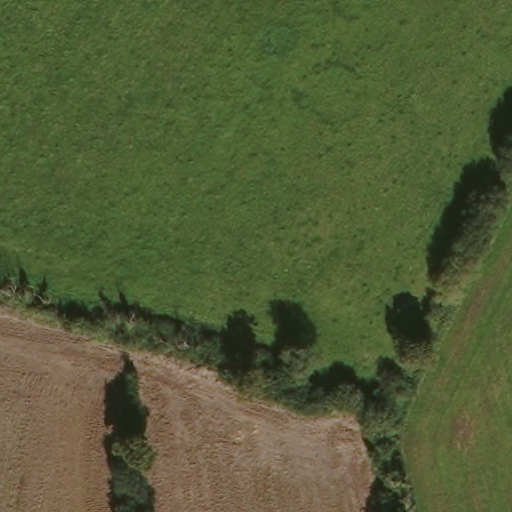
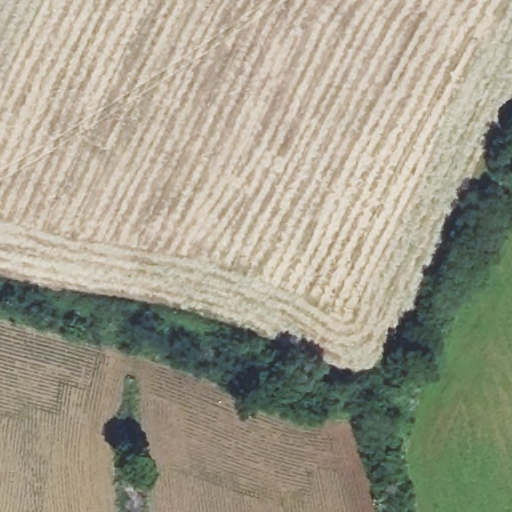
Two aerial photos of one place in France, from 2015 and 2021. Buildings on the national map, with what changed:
[]

